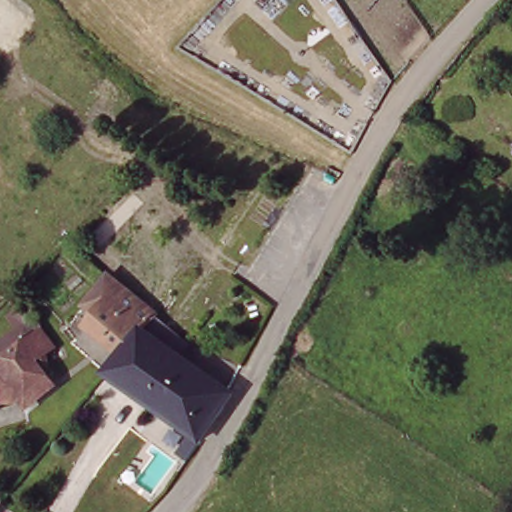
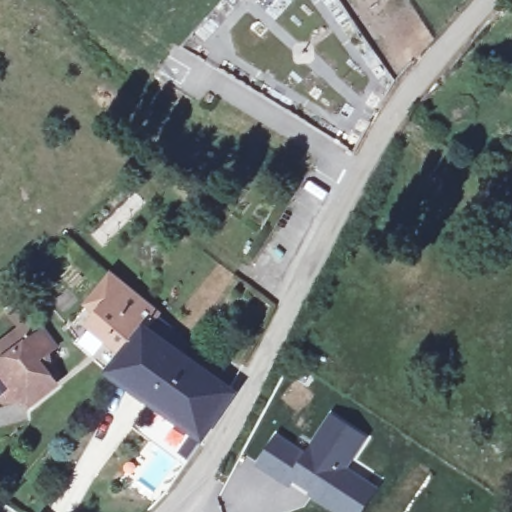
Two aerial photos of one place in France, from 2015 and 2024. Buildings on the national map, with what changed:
unchanged [(95,318),(104,306),(91,296),(116,269),(166,308),(164,311),(166,313),(153,321),(151,319),(129,345),(95,318)]
unchanged [(242,386),(221,414),(218,419),(209,431),(115,363),(129,345),(151,319),(153,321),(166,313),(196,335),(199,338),(191,349),(220,370),(227,375),(242,386)]
unchanged [(19,330),(30,320),(36,327),(38,326),(51,344),(36,357),(47,370),(18,396),(10,388),(0,397),(0,358),(25,336),(19,330)]
new [(256,466),(275,431),(304,452),(329,413),(366,438),(346,470),(378,488),(362,512),(332,512),(307,496),(309,492),(292,482),(289,488),(256,466)]

